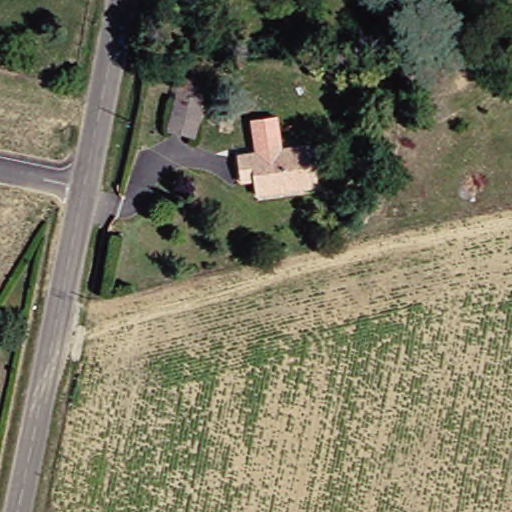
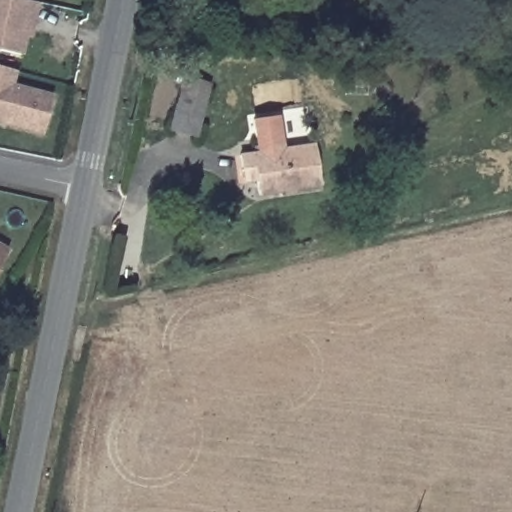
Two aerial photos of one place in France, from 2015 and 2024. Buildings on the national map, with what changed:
new [(0,0),(22,0),(39,3),(31,40),(26,39),(24,56),(0,51),(0,0)]
new [(0,125),(0,67),(17,72),(13,86),(53,95),(42,136),(0,125)]
unchanged [(195,137),(170,130),(183,78),(209,85),(195,137)]
new [(251,122),(278,116),(282,147),(255,151),(251,122)]
unchanged [(244,152),(317,142),(324,185),(261,194),(260,177),(247,178),(245,167),(244,152)]
new [(0,244),(10,249),(0,265),(0,244)]

